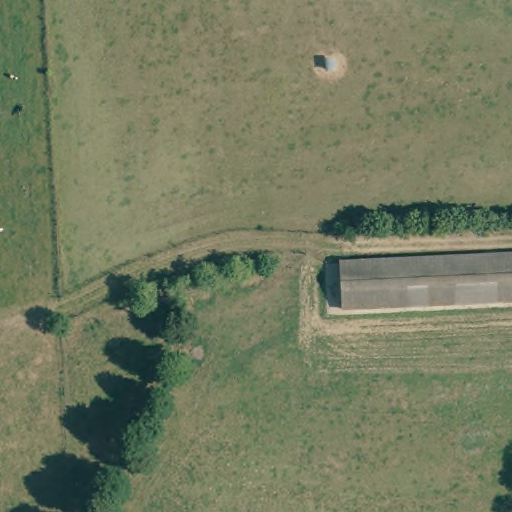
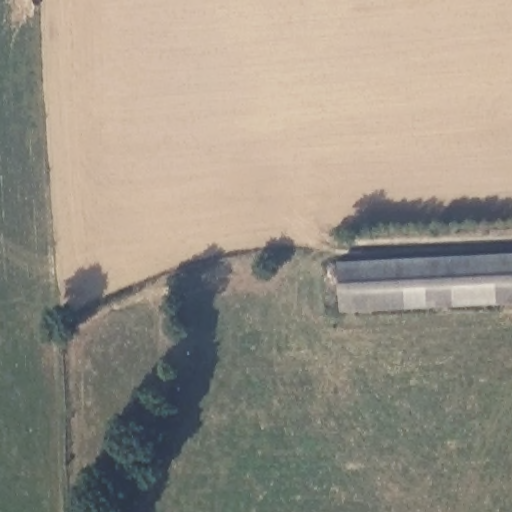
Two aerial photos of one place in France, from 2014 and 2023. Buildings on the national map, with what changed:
unchanged [(341,262),(512,251),(512,296),(345,308),(341,262)]

